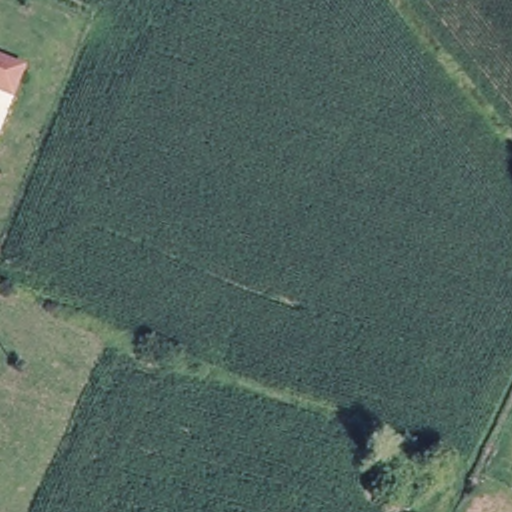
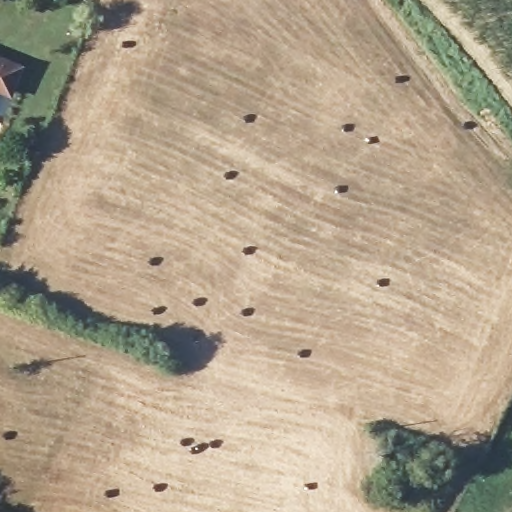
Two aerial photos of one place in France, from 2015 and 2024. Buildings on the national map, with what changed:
unchanged [(0,81),(0,54),(20,63),(10,86),(0,81)]

